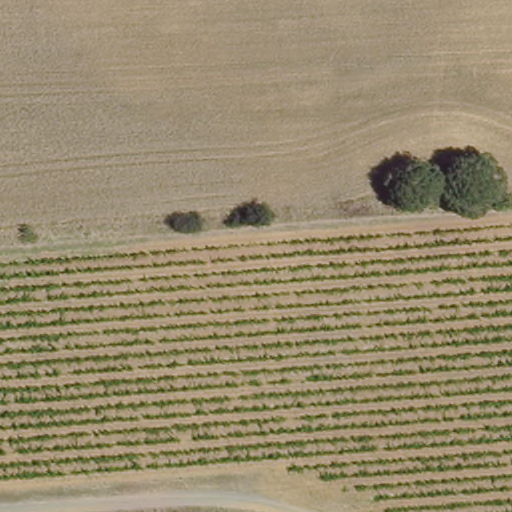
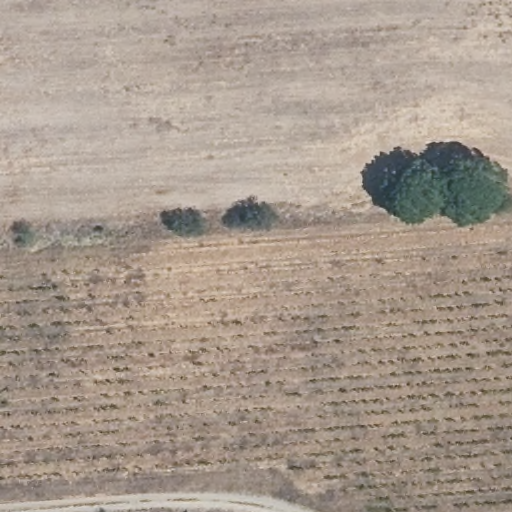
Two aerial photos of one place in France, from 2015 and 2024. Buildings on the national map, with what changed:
unchanged [(465,160),(469,185),(435,194),(432,170),(465,160)]

